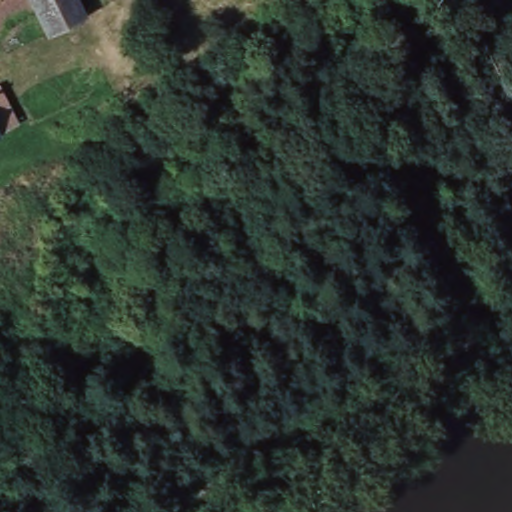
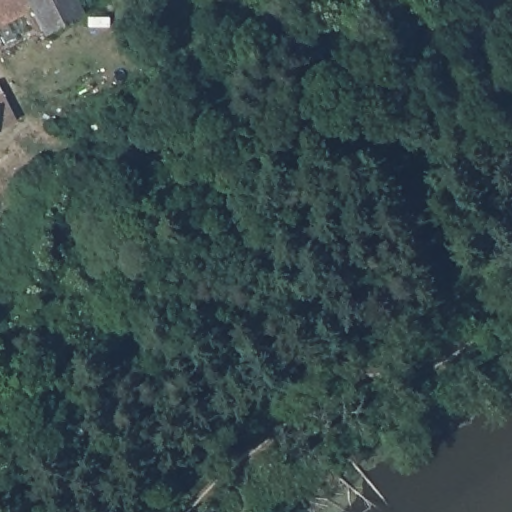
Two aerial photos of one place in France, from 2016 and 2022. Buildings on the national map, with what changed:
unchanged [(51,33),(39,10),(0,29),(0,0),(74,0),(82,16),(51,33)]
unchanged [(0,134),(0,90),(2,89),(18,125),(0,134)]

